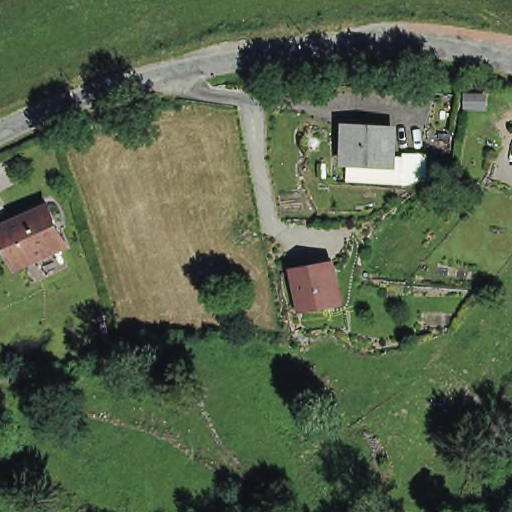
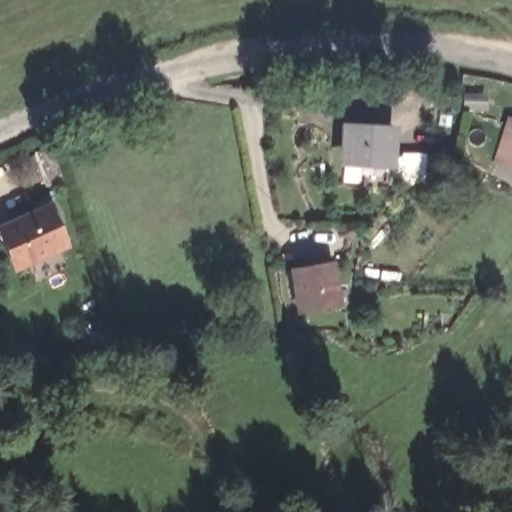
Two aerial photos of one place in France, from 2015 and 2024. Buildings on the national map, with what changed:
unchanged [(468,98),(487,98),(486,109),(468,109),(468,98)]
unchanged [(389,147),(412,148),(412,171),(396,175),(388,174),(388,176),(374,176),(374,171),(332,168),(333,152),(335,122),(376,123),(375,153),(389,154),(389,147)]
unchanged [(39,207),(58,248),(8,271),(0,253),(0,224),(39,207)]
unchanged [(323,265),(331,304),(291,311),(284,272),(323,265)]

